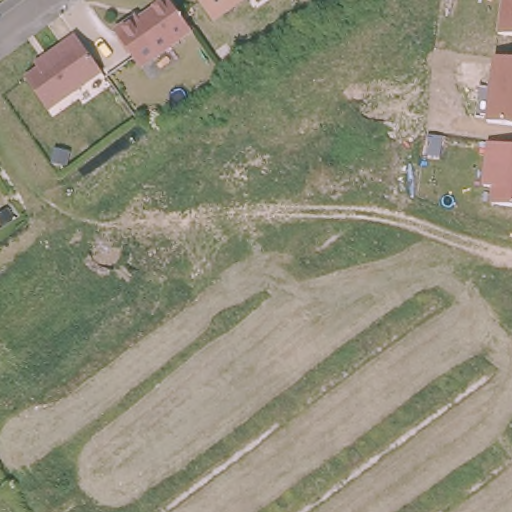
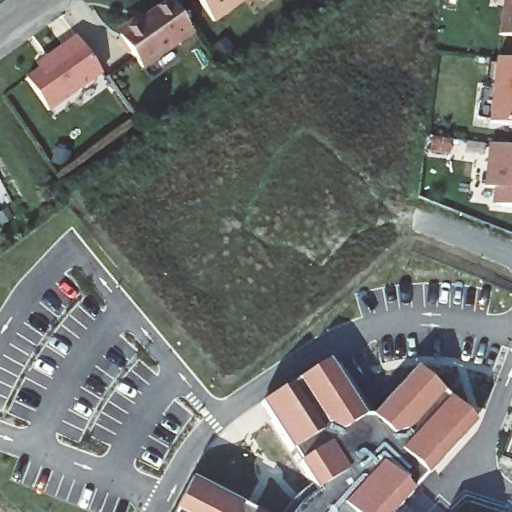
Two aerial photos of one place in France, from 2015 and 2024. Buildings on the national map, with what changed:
unchanged [(251,0),(219,24),(202,0),(251,0)]
unchanged [(502,0),(512,0),(512,37),(497,34),(502,0)]
unchanged [(195,34),(145,69),(123,37),(125,35),(127,29),(135,24),(140,24),(143,23),(145,25),(154,19),(152,16),(172,2),(195,34)]
unchanged [(52,106),(30,75),(54,58),(50,53),(80,33),(90,46),(105,68),(52,106)]
unchanged [(495,59),(512,61),(512,126),(488,124),(495,59)]
unchanged [(487,144),(512,147),(512,207),(491,205),(492,188),(483,187),(487,144)]
new [(315,511),(325,503),(262,403),(330,361),(365,415),(372,415),(418,367),(477,422),(414,489),(394,512),(314,512),(315,511)]
new [(195,479),(257,512),(177,512),(195,479)]
new [(325,503),(315,511),(314,512),(285,512),(291,504),(297,497),(314,483),(325,503)]

